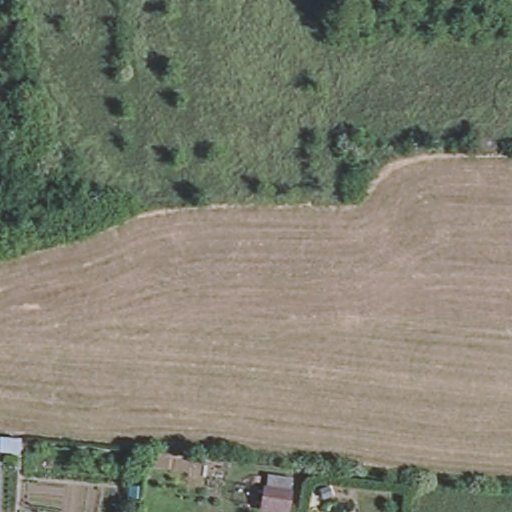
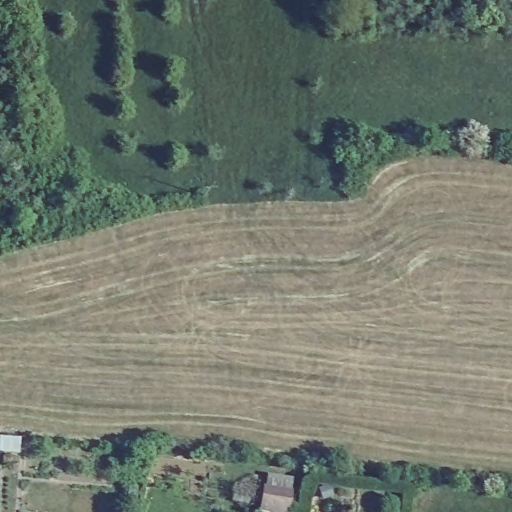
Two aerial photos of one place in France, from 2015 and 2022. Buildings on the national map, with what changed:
unchanged [(263,509),(265,490),(267,477),(292,479),(290,493),(288,512),(263,509)]

